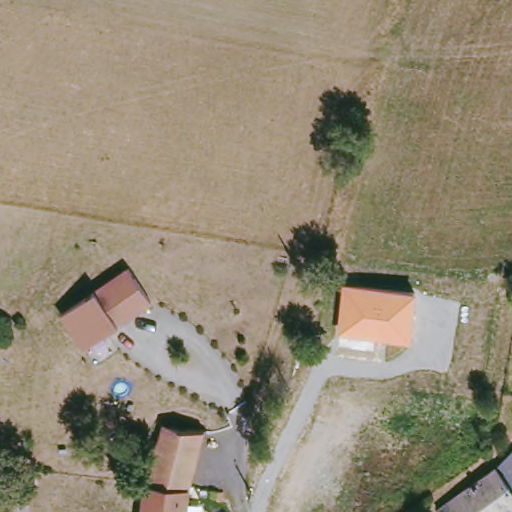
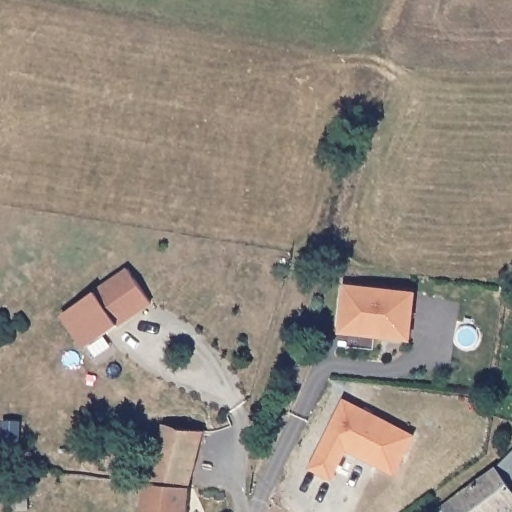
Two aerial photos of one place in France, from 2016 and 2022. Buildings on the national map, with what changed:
unchanged [(62,314),(128,269),(151,302),(117,326),(115,322),(107,327),(106,333),(85,347),(62,314)]
unchanged [(417,291),(411,341),(337,334),(342,283),(417,291)]
new [(372,463),(352,452),(352,450),(345,447),(330,478),(309,468),(342,400),(412,436),(402,457),(393,473),(372,463)]
unchanged [(190,482),(145,478),(163,422),(205,426),(190,482)]
unchanged [(439,510),(497,468),(512,452),(512,509),(507,512),(440,512),(439,510)]
unchanged [(187,512),(141,512),(145,478),(190,482),(187,512)]

